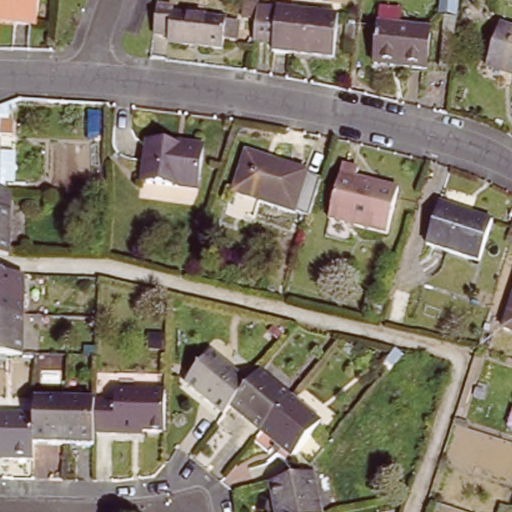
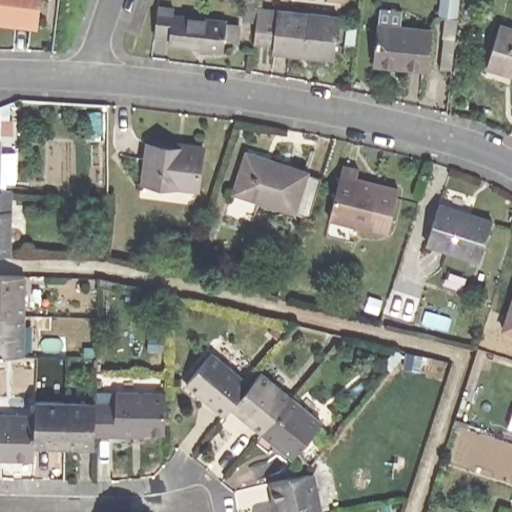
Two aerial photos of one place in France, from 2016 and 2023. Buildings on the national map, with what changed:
unchanged [(0,24),(0,0),(42,0),(39,27),(0,24)]
unchanged [(180,7),(241,17),(238,34),(224,32),(222,41),(176,34),(177,28),(160,27),(163,0),(177,0),(180,0),(180,7)]
unchanged [(280,38),(257,35),(261,17),(243,14),(246,0),(264,0),(307,5),(341,10),(340,21),(337,51),(279,44),(280,38)]
unchanged [(503,22),(512,25),(512,67),(490,59),(503,22)]
unchanged [(373,65),(375,49),(376,23),(430,27),(427,69),(403,67),(373,65)]
unchanged [(10,135),(8,186),(0,186),(0,135),(10,135)]
unchanged [(150,148),(184,153),(188,144),(210,149),(200,194),(145,185),(150,148)]
unchanged [(314,174),(300,214),(224,187),(238,146),(314,174)]
unchanged [(347,165),(360,169),(357,184),(381,191),(382,184),(400,189),(387,235),(332,220),(347,165)]
unchanged [(8,186),(17,187),(13,251),(0,251),(0,186),(8,186)]
unchanged [(481,260),(430,245),(443,201),(495,217),(481,260)]
unchanged [(22,277),(22,315),(0,315),(0,276),(22,277)]
unchanged [(22,315),(21,355),(0,354),(0,315),(22,315)]
unchanged [(512,316),(512,331),(507,330),(512,316)]
unchanged [(255,381),(234,405),(228,412),(190,376),(217,346),(255,381)]
unchanged [(262,430),(234,405),(255,381),(265,370),(293,395),(262,430)]
unchanged [(163,388),(162,429),(108,429),(108,435),(90,435),(93,398),(114,398),(114,387),(163,388)]
unchanged [(58,443),(30,441),(32,408),(32,395),(61,396),(60,398),(58,443)]
unchanged [(293,395),(322,421),(290,456),(262,430),(293,395)]
unchanged [(93,398),(90,435),(90,445),(58,443),(60,398),(93,398)]
unchanged [(32,408),(30,441),(29,455),(0,454),(0,408),(32,408)]
unchanged [(320,472),(328,512),(278,512),(271,481),(320,472)]

